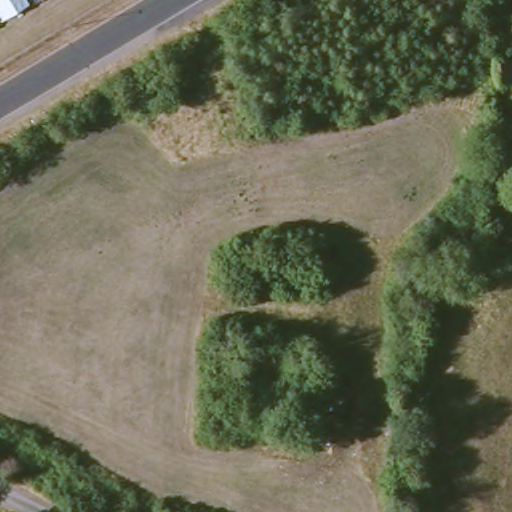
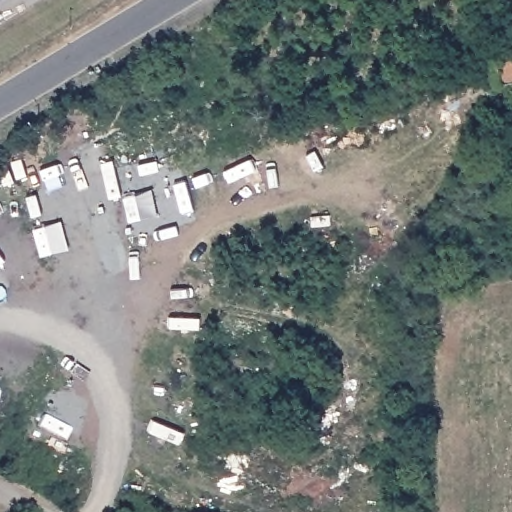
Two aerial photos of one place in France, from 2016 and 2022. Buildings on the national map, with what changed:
unchanged [(512,55),(512,80),(493,83),(495,56),(512,55)]

